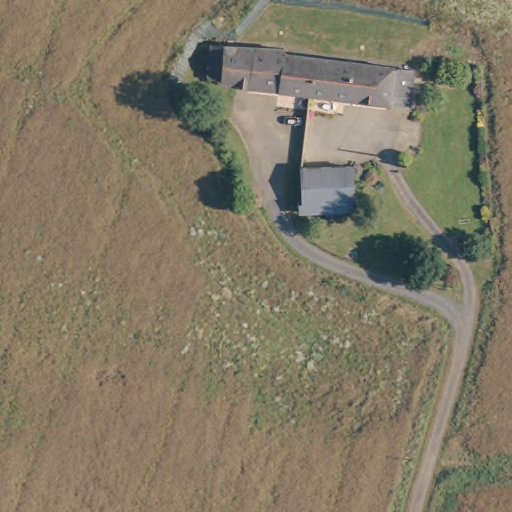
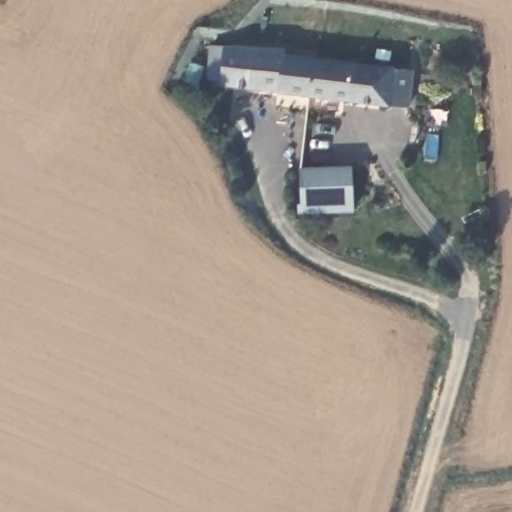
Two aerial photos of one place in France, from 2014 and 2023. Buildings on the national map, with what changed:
unchanged [(252,90),(229,87),(227,84),(215,82),(218,48),(290,52),(290,58),(304,60),(324,61),(319,97),(252,90)]
unchanged [(411,107),(319,97),(324,61),(416,72),(411,107)]
unchanged [(350,170),(354,210),(301,214),(300,204),(300,173),(305,172),(350,170)]

